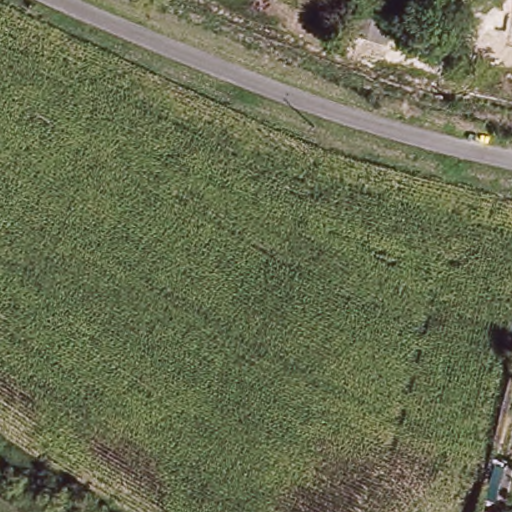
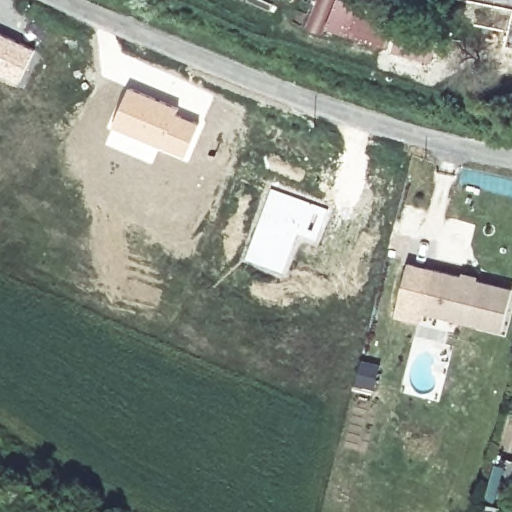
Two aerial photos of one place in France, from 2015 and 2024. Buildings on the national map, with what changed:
new [(319,29),(310,24),(323,0),(341,0),(382,24),(380,27),(396,37),(384,57),(323,22),(319,29)]
new [(19,81),(0,71),(0,31),(35,49),(19,81)]
new [(129,86),(179,108),(177,112),(198,122),(183,157),(137,137),(111,127),(129,86)]
new [(255,230),(266,201),(270,203),(270,204),(275,206),(279,189),(331,209),(317,246),(299,239),(284,275),(261,267),(266,237),(257,235),(252,245),(255,230)]
new [(408,261),(461,273),(512,288),(500,335),(425,312),(421,324),(394,317),(408,261)]
new [(361,358),(380,364),(373,390),(353,384),(361,358)]
unchanged [(489,512),(497,487),(511,491),(505,512),(489,512)]

